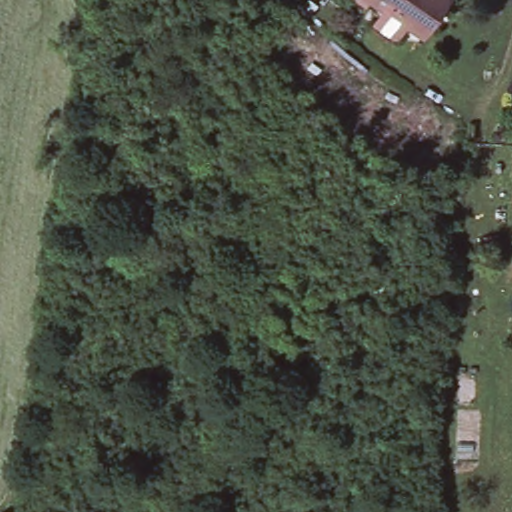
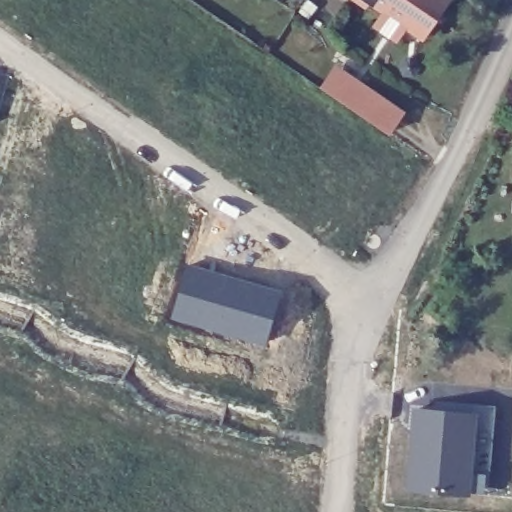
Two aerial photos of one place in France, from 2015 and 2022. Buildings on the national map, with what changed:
unchanged [(384,12),(368,1),(364,6),(356,0),(448,0),(423,37),(406,26),(396,41),(374,27),(384,12)]
new [(386,133),(337,99),(320,88),(334,67),(351,79),(401,112),(386,133)]
new [(281,294),(266,350),(172,322),(186,263),(281,294)]
new [(478,417),(471,498),(404,490),(413,408),(478,417)]

